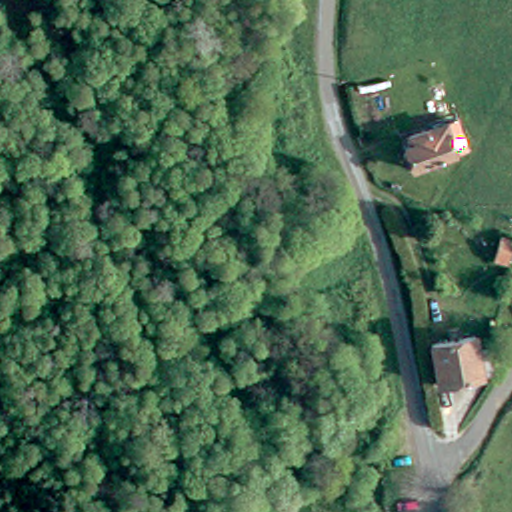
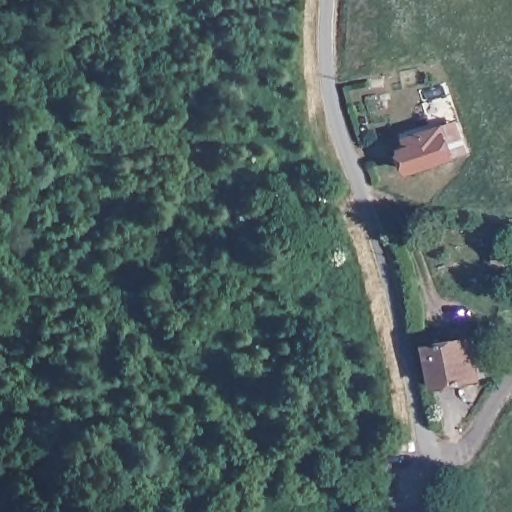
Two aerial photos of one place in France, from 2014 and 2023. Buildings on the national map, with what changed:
unchanged [(400,166),(395,167),(392,157),(396,156),(394,150),(401,147),(398,137),(435,126),(448,122),(457,155),(446,159),(401,172),(400,166)]
unchanged [(487,342),(493,363),(490,367),(435,385),(423,345),(465,330),(470,345),(487,342)]

